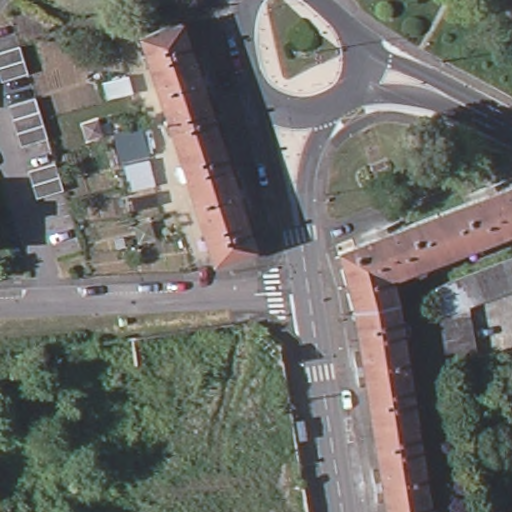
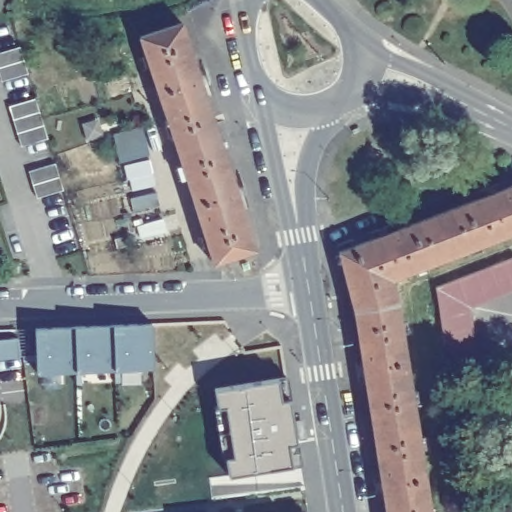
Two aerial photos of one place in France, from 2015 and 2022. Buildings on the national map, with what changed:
unchanged [(143,37),(186,25),(260,247),(211,267),(143,37)]
unchanged [(0,54),(20,49),(63,191),(38,200),(0,71),(0,54)]
unchanged [(140,127),(160,206),(135,215),(112,132),(140,127)]
unchanged [(397,276),(434,512),(385,512),(340,249),(512,180),(512,234),(397,276)]
unchanged [(438,287),(510,259),(512,264),(512,291),(468,308),(473,360),(447,366),(438,287)]
new [(154,365),(37,371),(34,326),(151,321),(154,365)]
demolished [(142,370),(105,376),(98,338),(137,335),(142,370)]
new [(287,377),(289,398),(295,440),(298,440),(302,463),(291,465),(228,474),(215,387),(278,377),(287,377)]

